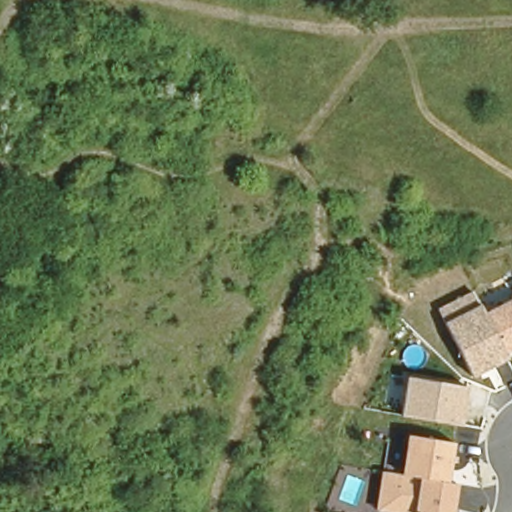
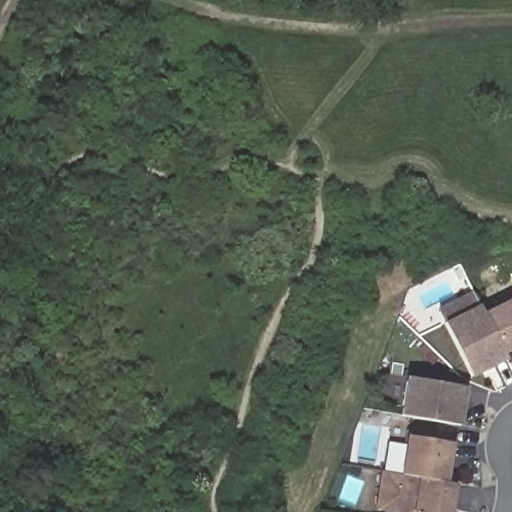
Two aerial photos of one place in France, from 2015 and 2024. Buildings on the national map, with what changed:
unchanged [(511,361),(474,378),(437,307),(473,289),(485,313),(512,300),(512,353),(508,354),(511,361)]
unchanged [(460,425),(402,417),(407,376),(467,385),(460,425)]
unchanged [(442,480),(401,474),(407,436),(452,443),(447,480),(442,480)]
unchanged [(392,512),(376,509),(383,471),(458,482),(454,512),(392,512)]

